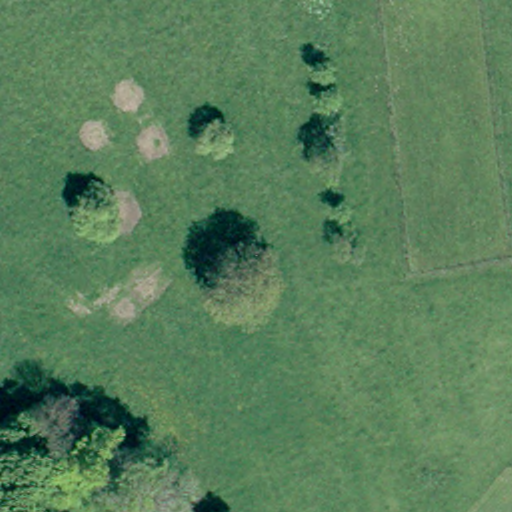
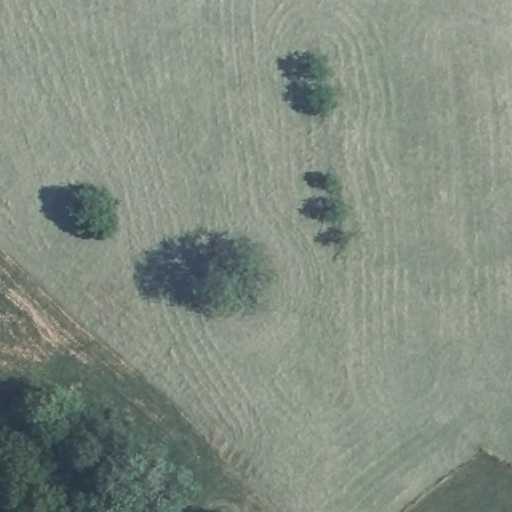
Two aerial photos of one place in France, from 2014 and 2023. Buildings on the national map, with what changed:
unchanged [(37,495),(57,482),(62,491),(42,503),(37,495)]

